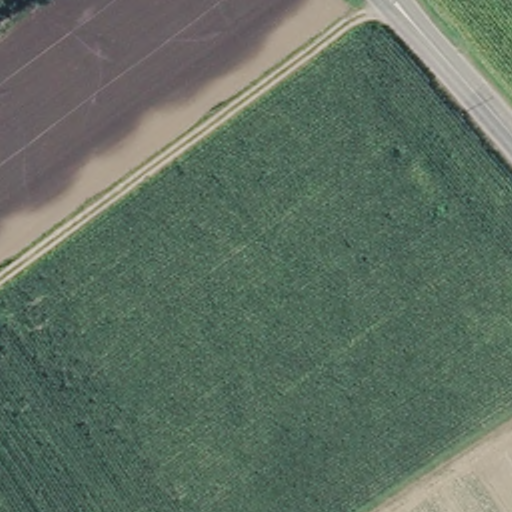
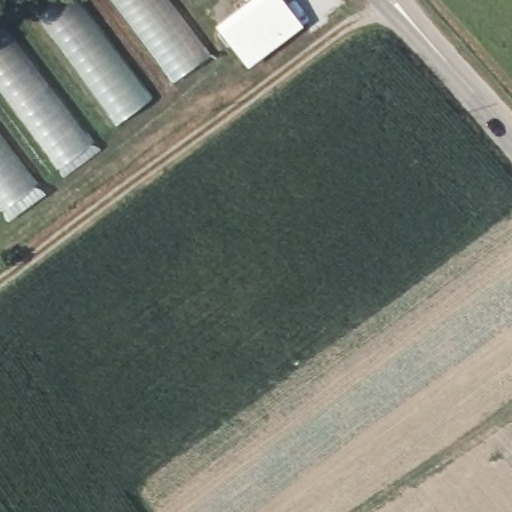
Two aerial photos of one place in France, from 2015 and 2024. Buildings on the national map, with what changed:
new [(23,0),(171,0),(211,54),(0,210),(0,16),(23,0)]
new [(285,0),(304,25),(248,66),(216,25),(247,0),(285,0)]

